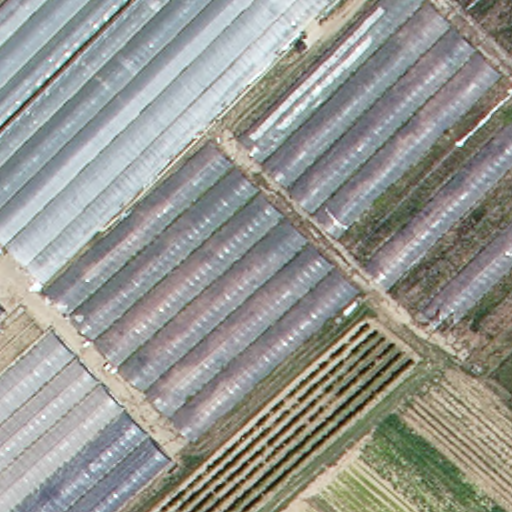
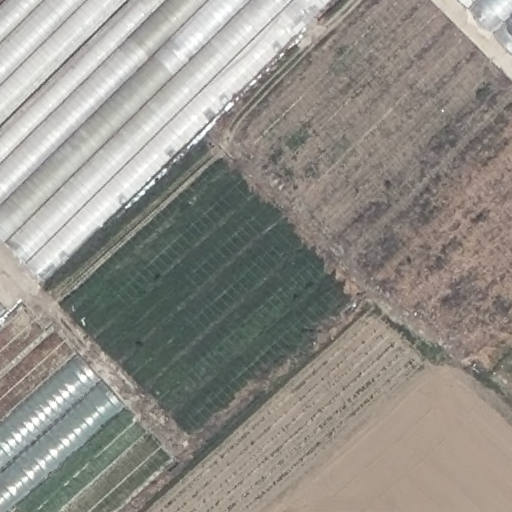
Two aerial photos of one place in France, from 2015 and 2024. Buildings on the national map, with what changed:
unchanged [(0,108),(0,0),(110,0),(0,108)]
unchanged [(123,0),(314,0),(32,277),(0,244),(0,121),(123,0)]
demolished [(436,324),(431,328),(405,306),(401,310),(380,290),(389,284),(358,252),(349,261),(227,136),(363,0),(418,0),(512,94),(512,297),(462,346),(436,324)]
demolished [(512,63),(447,0),(512,0),(512,63)]
new [(512,54),(458,0),(512,0),(512,54)]
demolished [(178,435),(33,289),(201,137),(347,286),(178,435)]
unchanged [(25,303),(167,459),(109,512),(0,512),(0,325),(25,303)]

